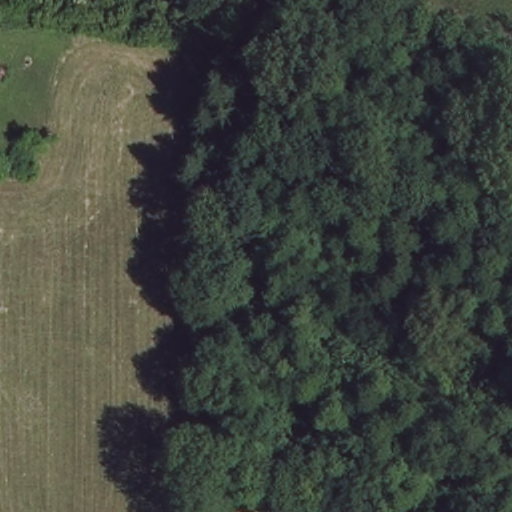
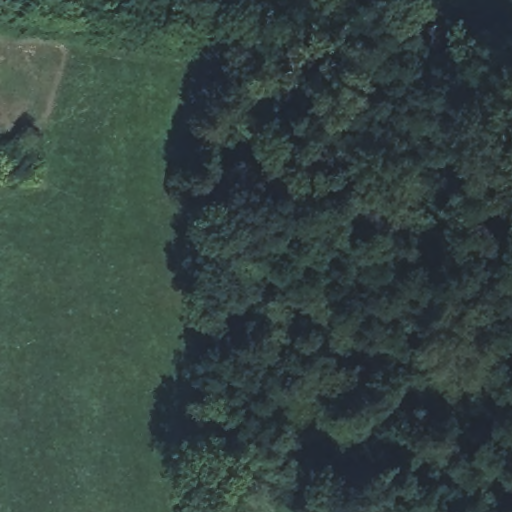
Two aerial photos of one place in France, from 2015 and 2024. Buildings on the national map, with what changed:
[]

